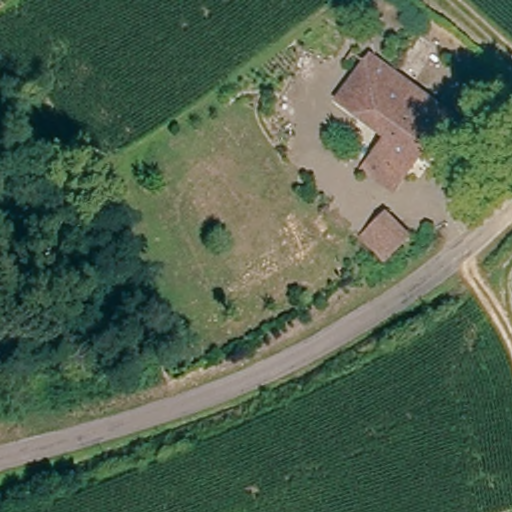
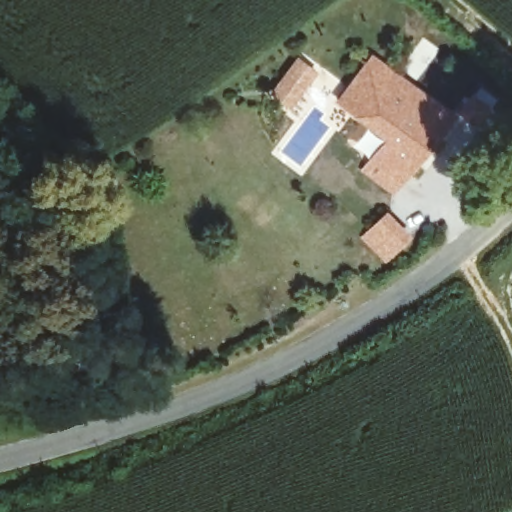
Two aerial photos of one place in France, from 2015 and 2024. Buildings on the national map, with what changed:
unchanged [(395,198),(363,174),(386,145),(325,94),(357,52),(372,64),(377,57),(453,119),(395,198)]
new [(291,110),(270,94),(298,55),(320,71),(291,110)]
unchanged [(461,105),(473,91),(487,104),(476,117),(461,105)]
unchanged [(382,264),(358,245),(380,216),(405,235),(382,264)]

